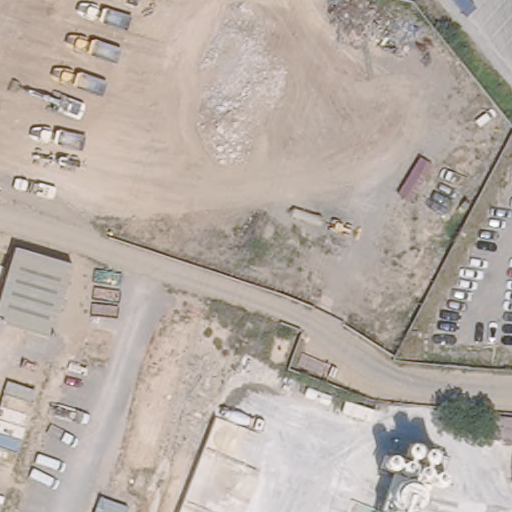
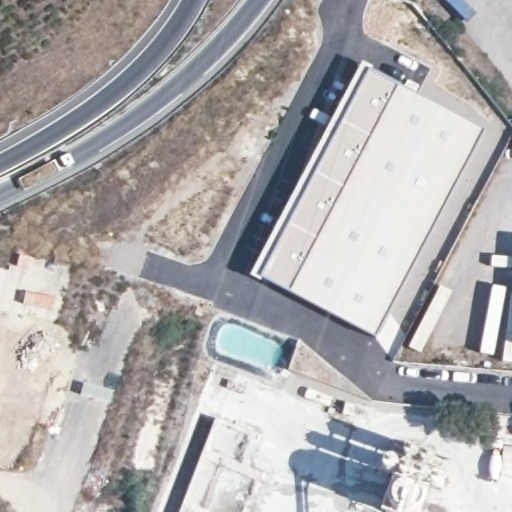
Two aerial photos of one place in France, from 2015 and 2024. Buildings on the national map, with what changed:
new [(361,63),(389,79),(469,120),(485,129),(457,190),(429,244),(374,339),(250,274),(361,63)]
demolished [(434,512),(405,512),(370,499),(386,453),(450,477),(434,512)]

